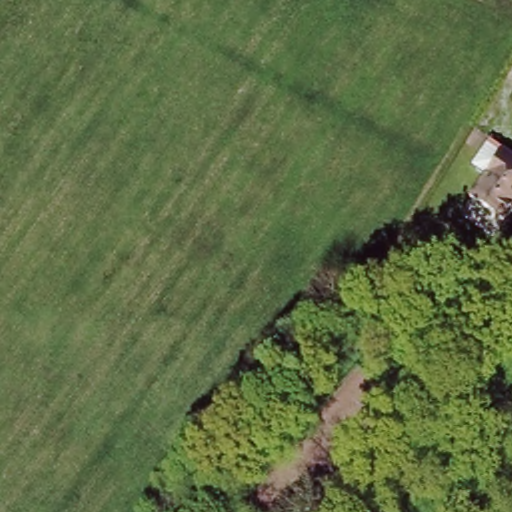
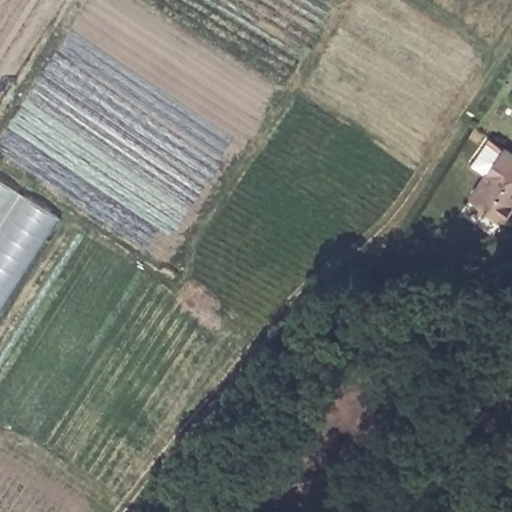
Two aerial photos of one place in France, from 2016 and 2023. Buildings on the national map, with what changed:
unchanged [(472,198),(503,147),(512,153),(512,208),(505,219),(472,198)]
new [(0,309),(0,180),(59,217),(0,309)]

